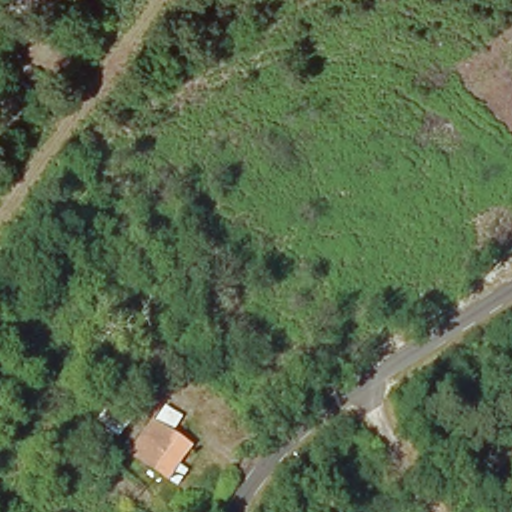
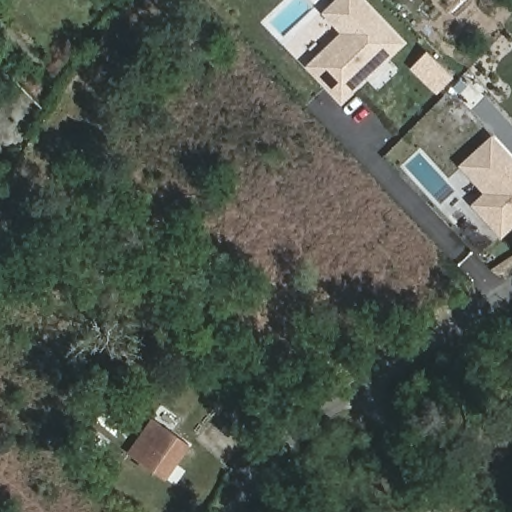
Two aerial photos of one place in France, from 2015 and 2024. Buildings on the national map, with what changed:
new [(344,31),(326,11),(338,0),(361,0),(401,43),(340,99),(308,65),(344,31)]
new [(453,76),(437,93),(410,67),(427,50),(453,76)]
new [(492,139),(512,161),(512,225),(501,235),(474,205),(487,194),(462,166),(492,139)]
unchanged [(170,483),(134,455),(158,425),(192,451),(170,483)]

